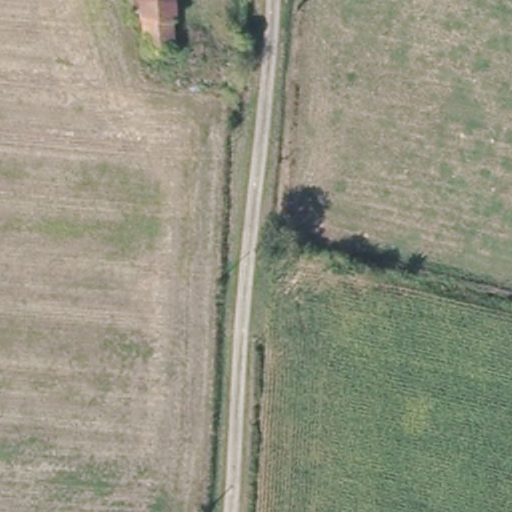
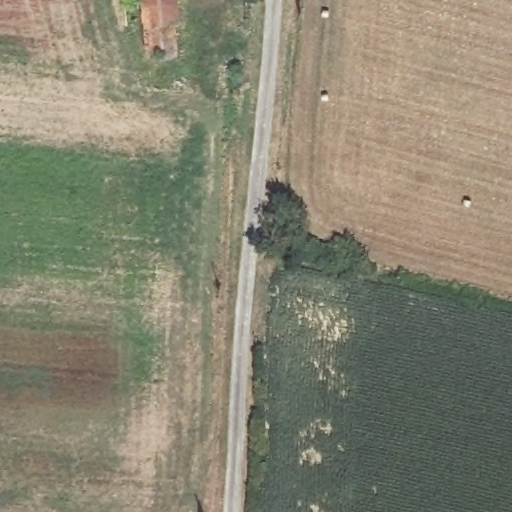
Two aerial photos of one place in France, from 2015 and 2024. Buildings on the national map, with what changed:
unchanged [(185,21),(180,22),(183,52),(150,52),(147,27),(129,27),(126,0),(183,0),(185,21)]

